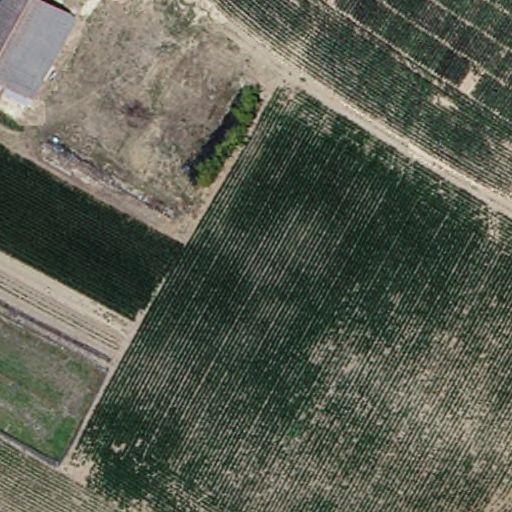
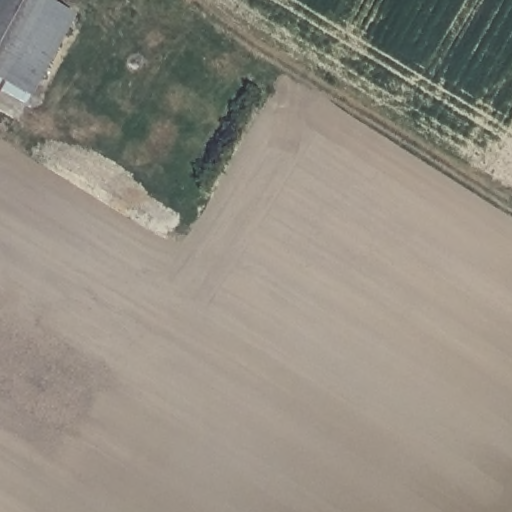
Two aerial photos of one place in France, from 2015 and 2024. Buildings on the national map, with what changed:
unchanged [(22,97),(0,82),(0,0),(44,0),(68,14),(22,97)]

